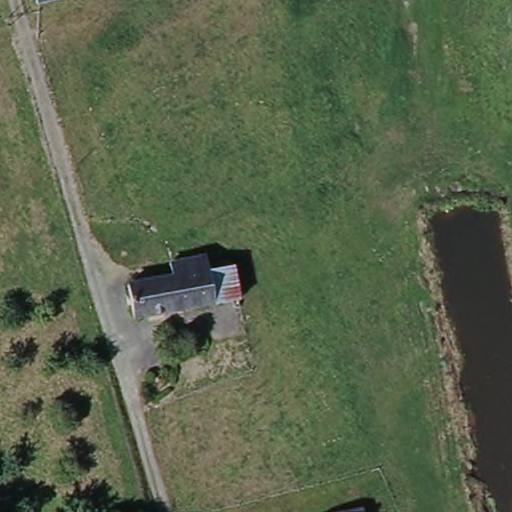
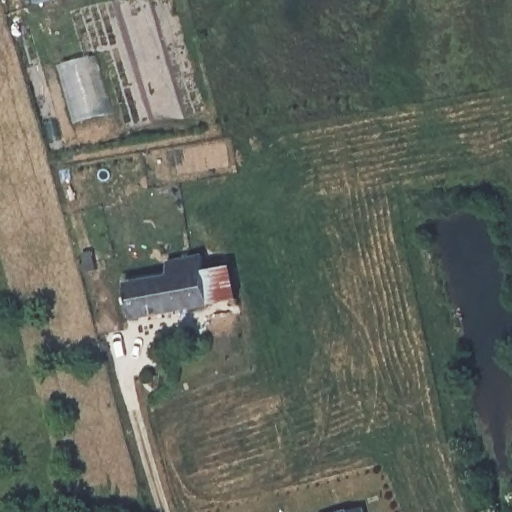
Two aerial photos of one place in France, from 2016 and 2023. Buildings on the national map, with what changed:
unchanged [(27,0),(51,0),(27,4),(27,0)]
new [(100,54),(115,117),(73,126),(55,66),(100,54)]
unchanged [(127,288),(167,279),(164,263),(200,258),(206,271),(228,266),(235,302),(213,307),(133,324),(127,288)]
unchanged [(358,509),(359,512),(348,512),(358,509)]

